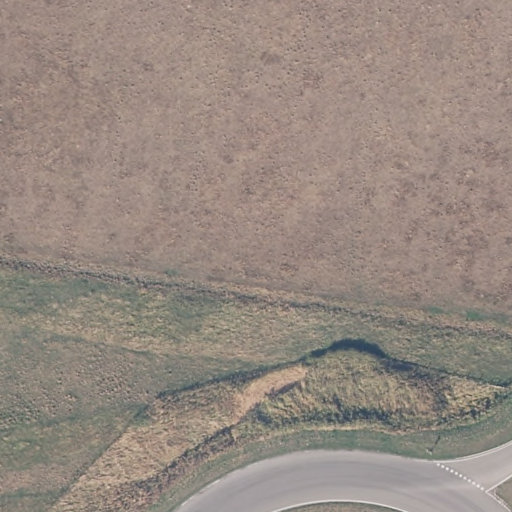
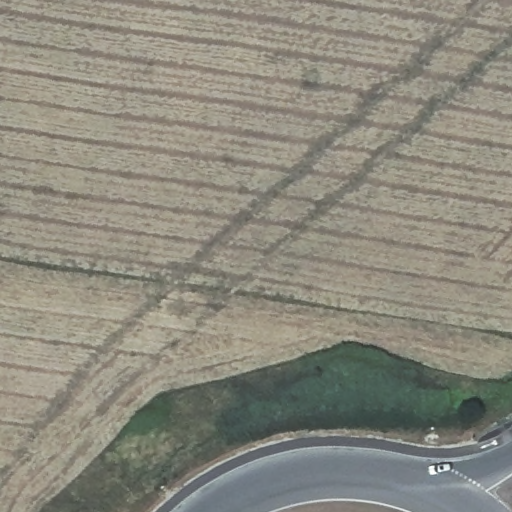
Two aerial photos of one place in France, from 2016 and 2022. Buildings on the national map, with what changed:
[]

